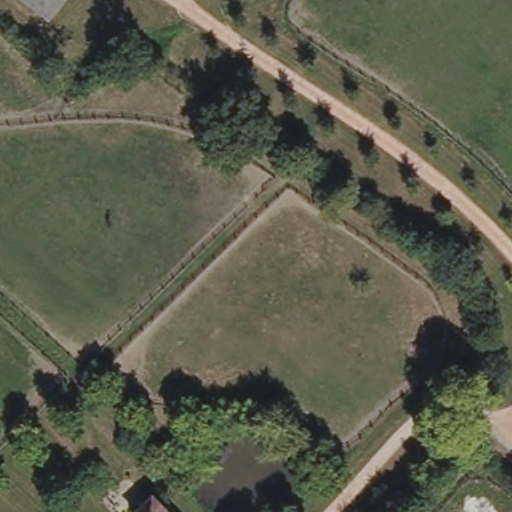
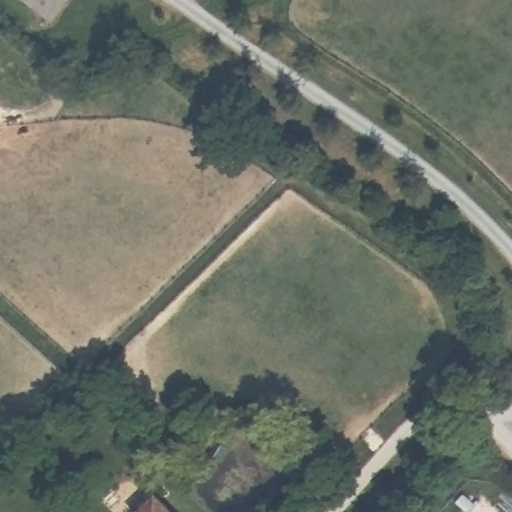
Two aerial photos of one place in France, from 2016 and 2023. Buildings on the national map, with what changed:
unchanged [(33,0),(64,0),(53,14),(33,0)]
unchanged [(189,452),(199,466),(184,477),(176,463),(189,452)]
unchanged [(166,512),(143,512),(154,501),(166,512)]

